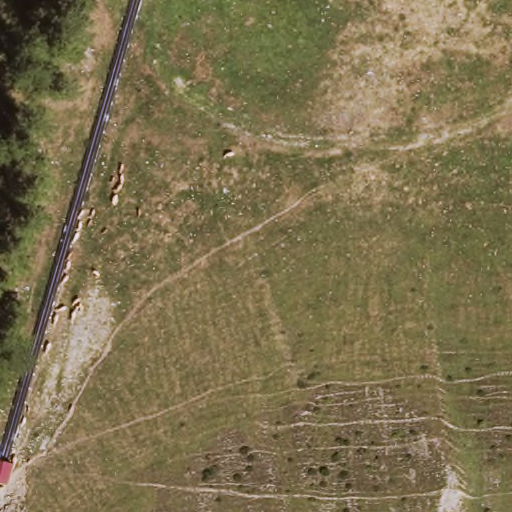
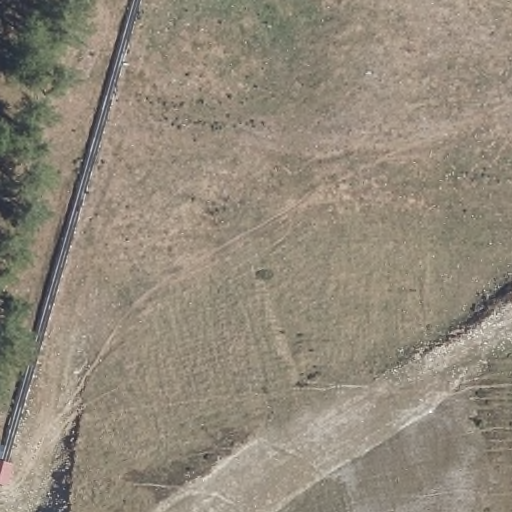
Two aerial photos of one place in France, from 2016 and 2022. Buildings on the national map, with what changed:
unchanged [(0,482),(0,461),(4,462),(13,463),(9,485),(0,482)]

